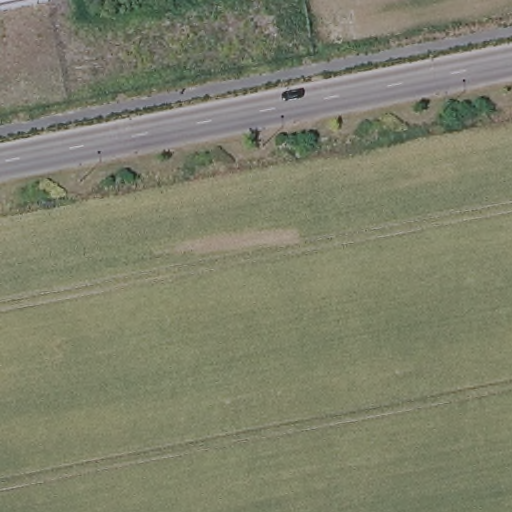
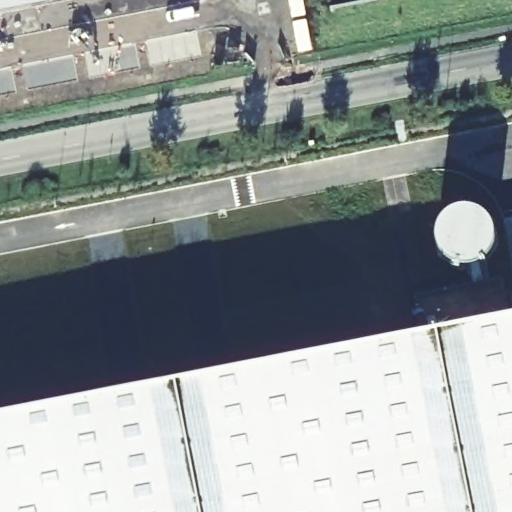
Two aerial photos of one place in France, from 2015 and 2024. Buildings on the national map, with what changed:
unchanged [(50,2),(0,12),(0,0),(49,0),(50,2)]
new [(512,316),(512,512),(0,512),(0,416),(512,316)]

